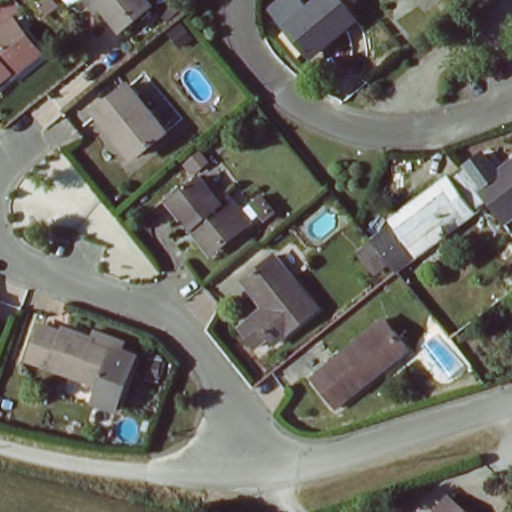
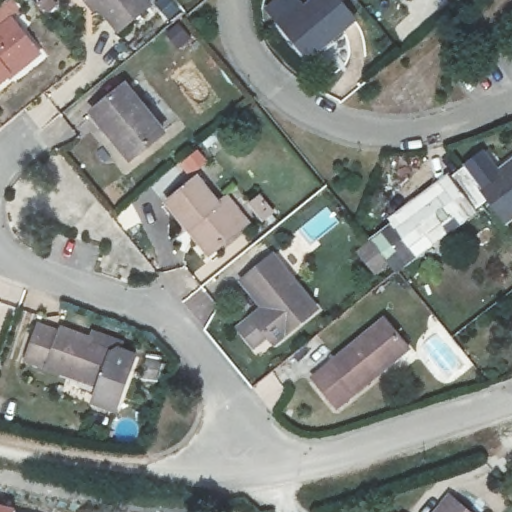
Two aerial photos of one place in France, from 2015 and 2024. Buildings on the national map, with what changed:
unchanged [(142,0),(149,8),(119,33),(98,7),(93,12),(83,0),(142,0)]
unchanged [(338,0),(356,22),(333,41),(329,36),(307,55),(283,26),(316,0),(338,0)]
unchanged [(13,75),(11,73),(0,82),(0,32),(15,19),(37,46),(42,52),(13,75)]
unchanged [(125,86),(165,134),(132,161),(92,114),(125,86)]
unchanged [(498,206),(492,199),(483,187),(512,164),(512,217),(508,220),(504,215),(498,206)]
unchanged [(398,272),(372,241),(467,167),(483,187),(492,199),(437,242),(421,254),(398,272)]
unchanged [(191,229),(169,203),(203,176),(223,202),(227,199),(247,224),(216,250),(212,254),(191,229)]
unchanged [(318,309),(275,345),(253,320),(265,310),(242,284),(248,279),(273,257),(318,309)]
unchanged [(312,381),(386,320),(408,347),(411,351),(384,374),(338,411),(312,381)]
unchanged [(70,332),(69,335),(93,345),(101,344),(116,350),(97,404),(75,397),(82,378),(9,353),(20,321),(38,327),(40,321),(70,332)]
unchanged [(448,491),(473,512),(431,512),(448,491)]
new [(17,508),(16,512),(0,512),(0,504),(17,508)]

